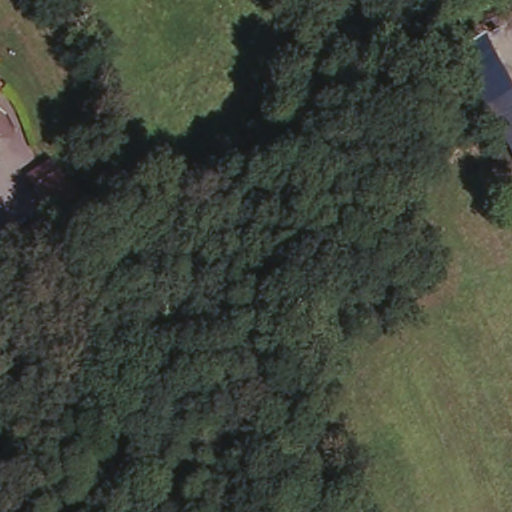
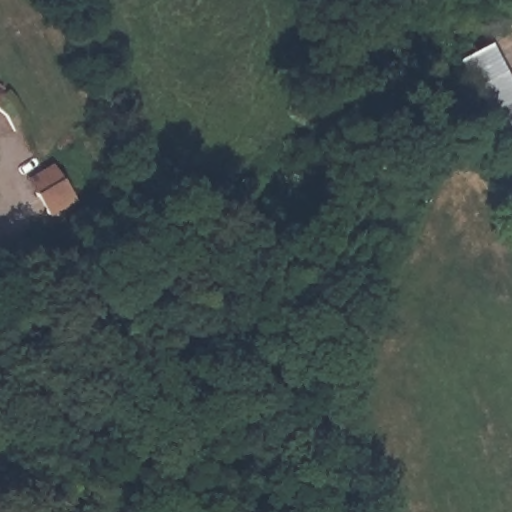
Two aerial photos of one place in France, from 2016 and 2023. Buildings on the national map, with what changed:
unchanged [(512,100),(512,153),(488,114),(512,100)]
new [(75,200),(49,215),(26,178),(52,162),(70,191),(75,200)]

